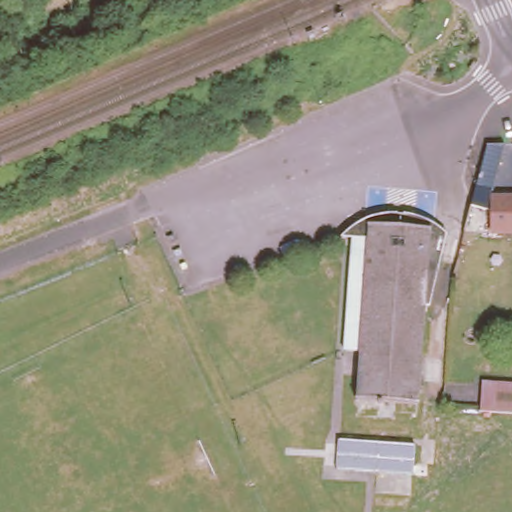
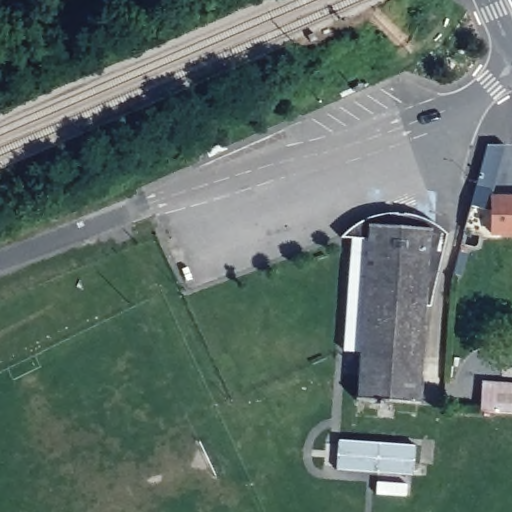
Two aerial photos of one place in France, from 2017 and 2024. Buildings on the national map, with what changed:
unchanged [(496,192),(512,192),(512,230),(496,230),(495,224),(490,223),(490,209),(470,204),(492,140),(510,140),(496,192)]
unchanged [(389,415),(350,412),(355,349),(340,348),(347,220),(335,219),(335,217),(351,213),(368,211),(385,211),(401,213),(418,216),(434,222),(446,232),(431,304),(425,304),(425,295),(419,295),(412,400),(411,417),(389,415)]
unchanged [(512,382),(512,409),(481,406),(485,379),(512,382)]
unchanged [(415,450),(412,480),(335,475),(337,445),(415,450)]

